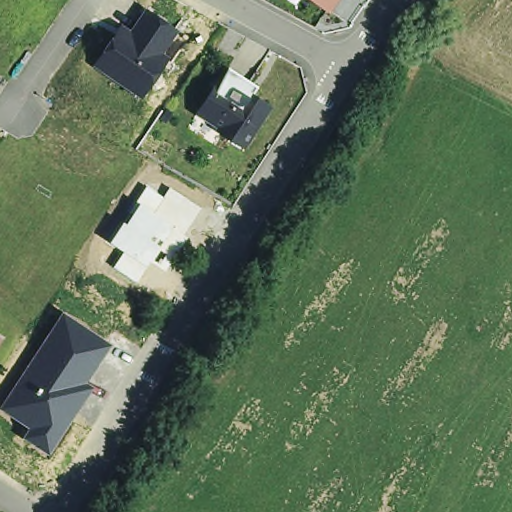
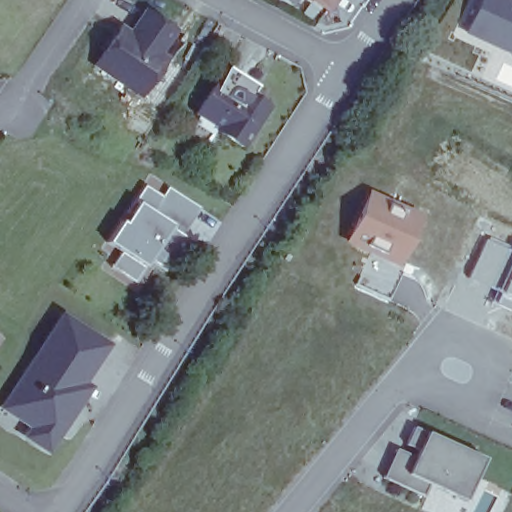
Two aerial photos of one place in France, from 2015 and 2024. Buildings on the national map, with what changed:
new [(479,0),(512,0),(512,56),(464,33),(479,0)]
unchanged [(155,55),(160,59),(140,94),(94,63),(120,26),(127,32),(142,9),(172,29),(155,55)]
unchanged [(246,154),(215,135),(217,131),(193,113),(217,74),(240,90),(245,88),(275,109),(246,154)]
unchanged [(165,271),(148,261),(135,281),(113,267),(122,251),(109,243),(122,221),(146,187),(163,197),(169,188),(200,208),(183,236),(186,237),(165,271)]
new [(424,217),(403,268),(346,242),(370,192),(424,217)]
new [(512,247),(512,249),(492,290),(465,279),(486,235),(512,247)]
new [(512,312),(492,303),(497,293),(492,290),(512,249),(512,312)]
unchanged [(47,454),(22,438),(28,429),(0,408),(0,406),(62,313),(110,344),(85,383),(92,387),(47,454)]
new [(464,500),(427,484),(422,495),(382,477),(395,449),(403,452),(414,428),(425,433),(482,458),(464,500)]

